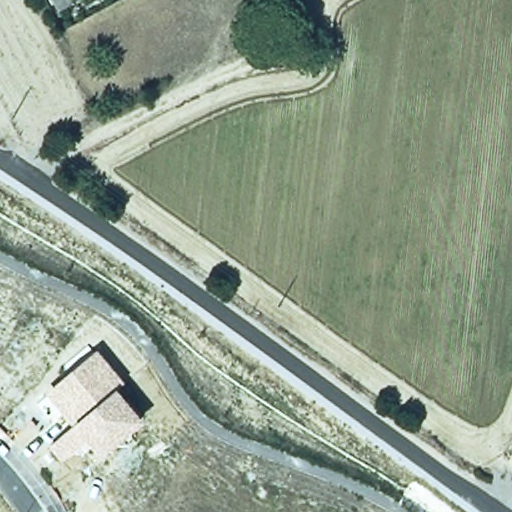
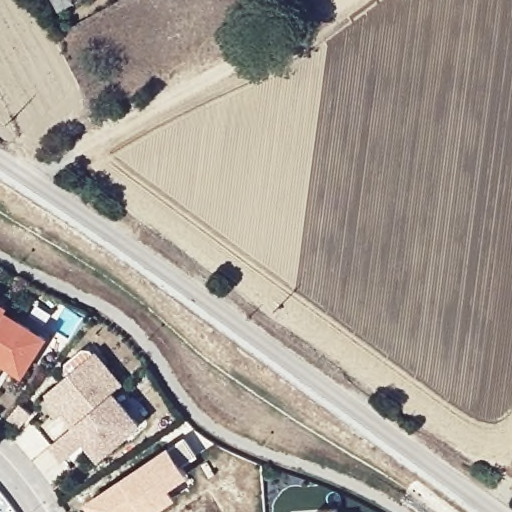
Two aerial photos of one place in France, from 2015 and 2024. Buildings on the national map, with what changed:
new [(0,321),(0,302),(8,307),(6,311),(0,321)]
new [(23,376),(3,365),(0,370),(0,321),(6,311),(48,336),(23,376)]
unchanged [(47,447),(72,425),(47,396),(95,350),(126,386),(118,395),(143,426),(99,462),(85,445),(59,463),(47,447)]
new [(169,489),(177,499),(156,512),(142,512),(141,511),(139,512),(93,512),(86,501),(169,447),(188,476),(169,489)]
new [(334,508),(334,512),(315,512),(314,510),(334,508)]

